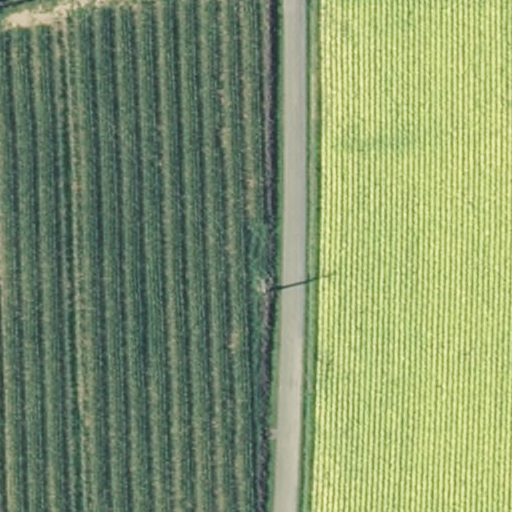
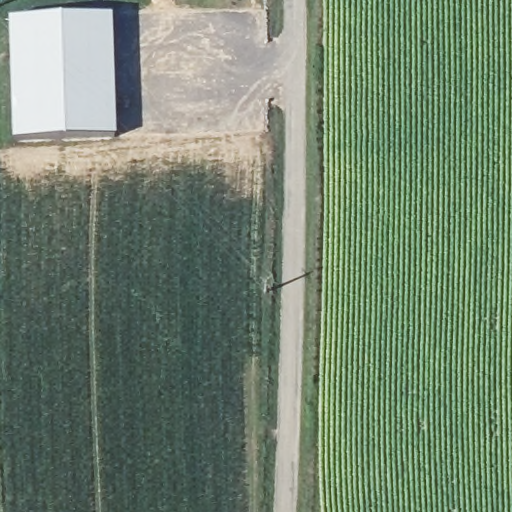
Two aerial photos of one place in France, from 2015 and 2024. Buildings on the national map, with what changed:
new [(112,11),(115,134),(14,138),(11,13),(112,11)]

